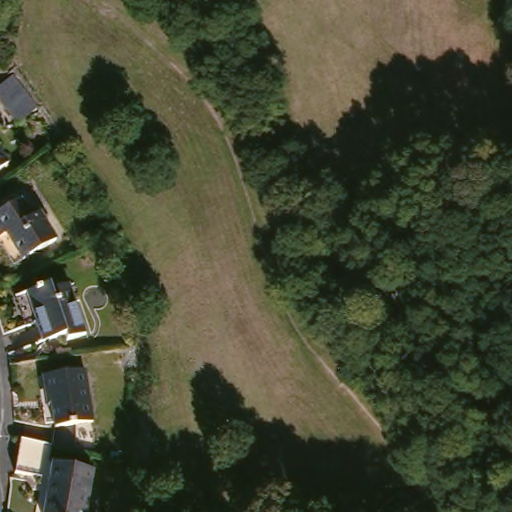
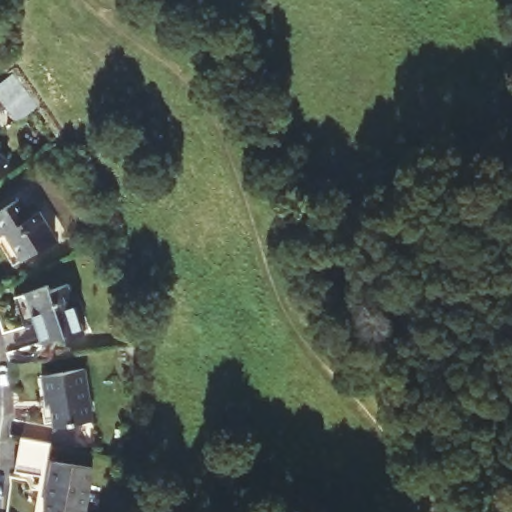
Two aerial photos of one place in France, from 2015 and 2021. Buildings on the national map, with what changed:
unchanged [(42,107),(20,122),(0,97),(0,85),(17,73),(42,107)]
unchanged [(0,173),(0,168),(2,172),(0,173)]
unchanged [(48,243),(15,262),(0,237),(0,210),(12,203),(22,220),(32,214),(48,243)]
unchanged [(60,288),(77,337),(60,343),(57,337),(36,344),(20,298),(40,291),(42,294),(60,288)]
unchanged [(84,364),(92,416),(53,422),(49,390),(45,390),(42,370),(84,364)]
unchanged [(49,452),(44,481),(11,476),(15,447),(49,452)]
unchanged [(83,512),(44,512),(52,467),(91,475),(83,512)]

